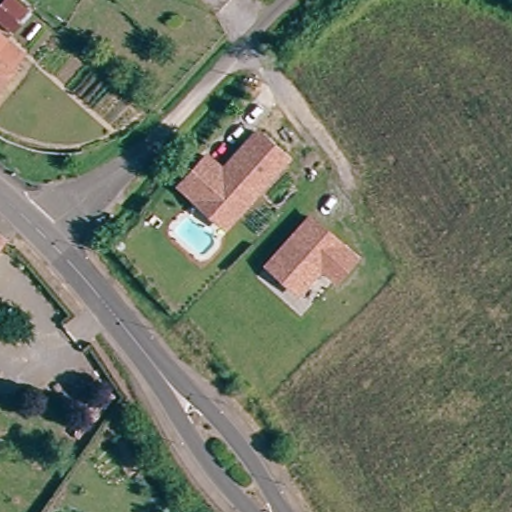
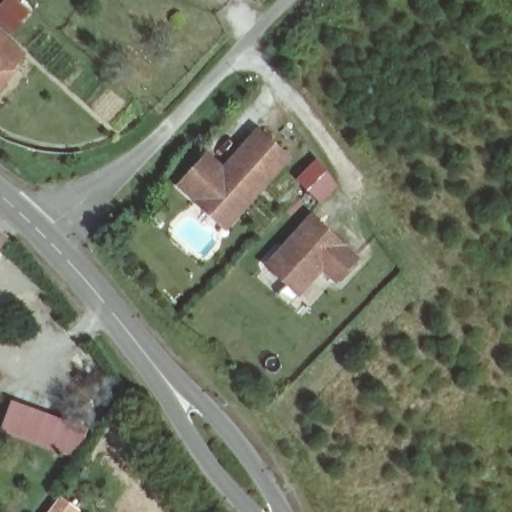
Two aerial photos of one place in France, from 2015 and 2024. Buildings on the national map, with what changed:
unchanged [(10,37),(0,27),(0,10),(10,0),(13,0),(30,17),(10,37)]
unchanged [(0,39),(22,58),(0,82),(0,39)]
unchanged [(196,202),(179,187),(206,157),(221,171),(256,133),(286,160),(235,218),(224,229),(196,202)]
unchanged [(312,217),(357,258),(336,280),(323,268),(303,291),(271,262),(312,217)]
unchanged [(0,232),(6,236),(0,246),(0,232)]
new [(18,436),(30,406),(83,427),(71,457),(18,436)]

